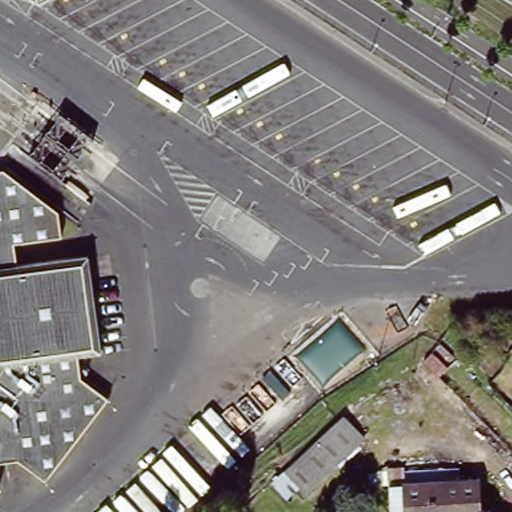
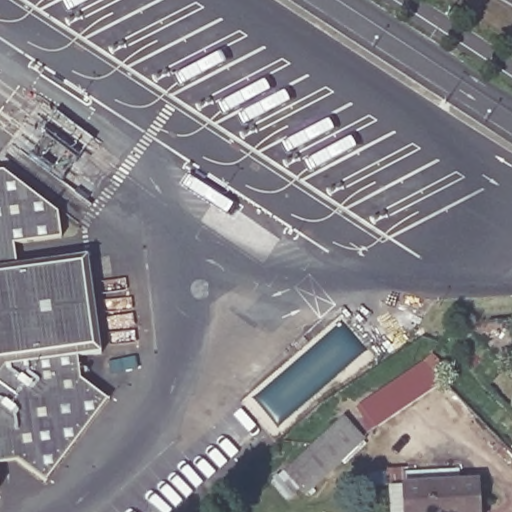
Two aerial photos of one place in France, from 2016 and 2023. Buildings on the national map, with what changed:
unchanged [(93,136),(64,178),(29,155),(63,113),(93,136)]
unchanged [(66,209),(68,235),(23,242),(24,263),(95,255),(100,299),(73,291),(65,289),(30,276),(0,264),(0,170),(11,169),(66,209)]
unchanged [(65,289),(73,291),(100,299),(105,356),(81,359),(83,383),(111,404),(48,487),(18,464),(0,466),(0,264),(30,276),(65,289)]
demolished [(448,361),(439,369),(454,382),(441,395),(416,373),(434,349),(448,361)]
new [(374,427),(366,432),(354,409),(361,404),(423,362),(431,353),(446,367),(435,374),(444,382),(374,427)]
unchanged [(307,495),(286,473),(344,418),(366,439),(307,495)]
unchanged [(0,493),(0,475),(2,493),(0,493)]
unchanged [(394,502),(393,483),(481,479),(482,512),(409,512),(408,501),(394,502)]

